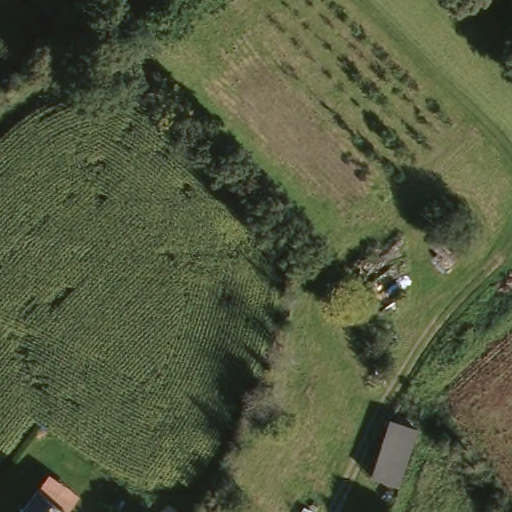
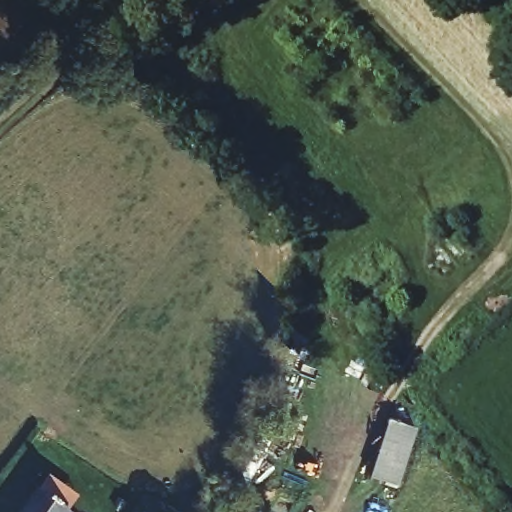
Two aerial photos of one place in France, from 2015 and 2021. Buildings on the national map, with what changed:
unchanged [(414,435),(395,492),(368,483),(387,426),(414,435)]
unchanged [(80,511),(79,512),(28,512),(46,488),(80,511)]

